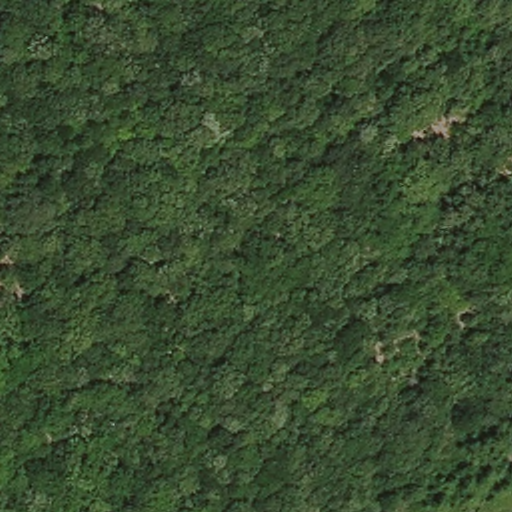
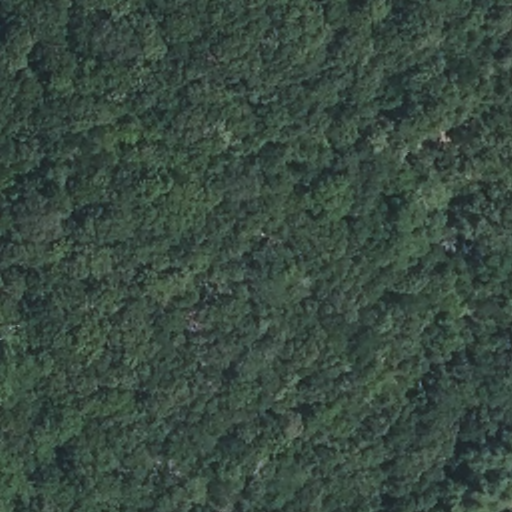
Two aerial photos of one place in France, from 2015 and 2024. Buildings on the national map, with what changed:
unchanged [(512,20),(512,35),(508,37),(502,25),(512,20)]

